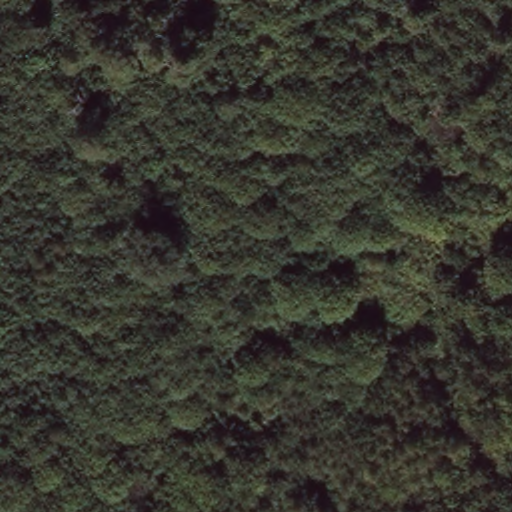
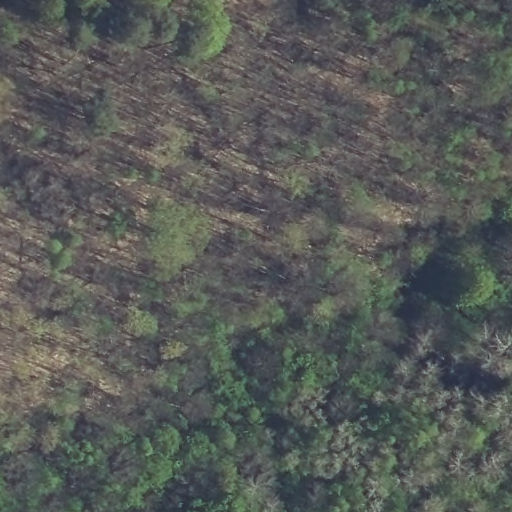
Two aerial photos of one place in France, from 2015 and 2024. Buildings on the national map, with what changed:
[]

